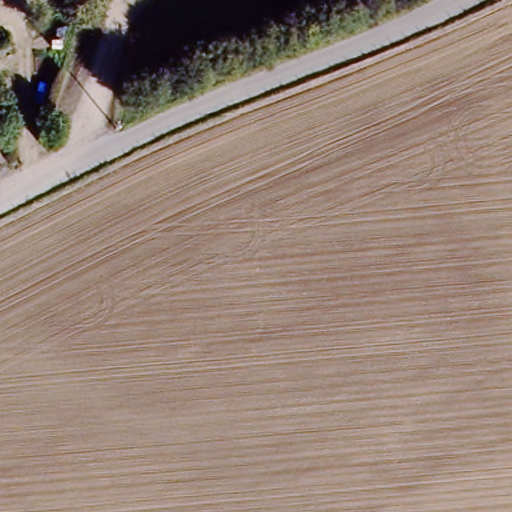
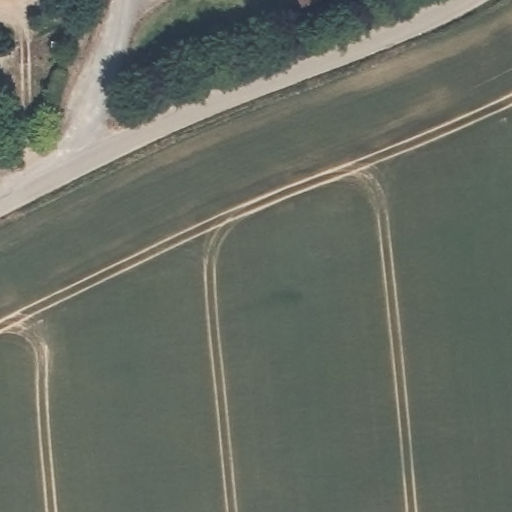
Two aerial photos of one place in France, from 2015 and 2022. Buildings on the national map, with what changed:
unchanged [(298,0),(300,0),(299,1),(298,0)]

